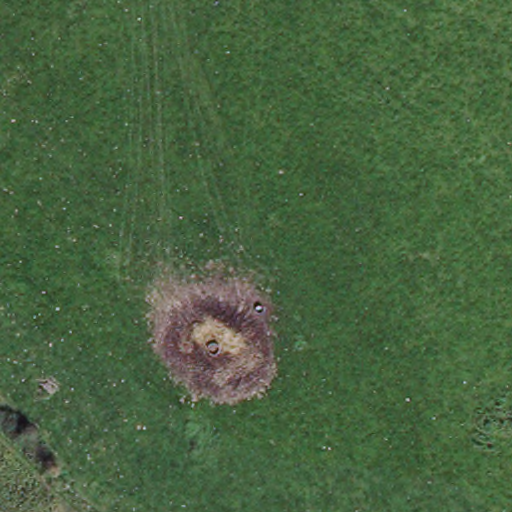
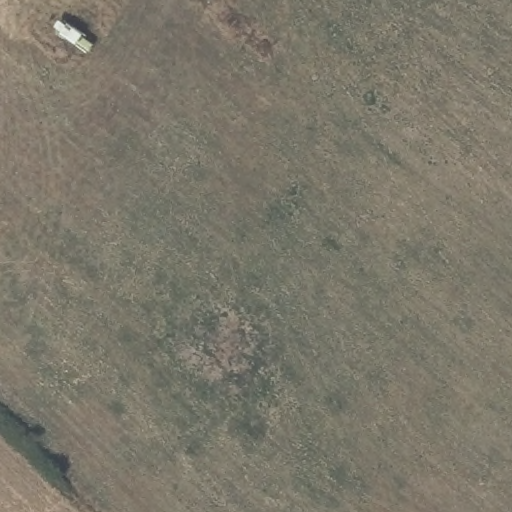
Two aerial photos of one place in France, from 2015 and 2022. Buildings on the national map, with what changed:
[]

